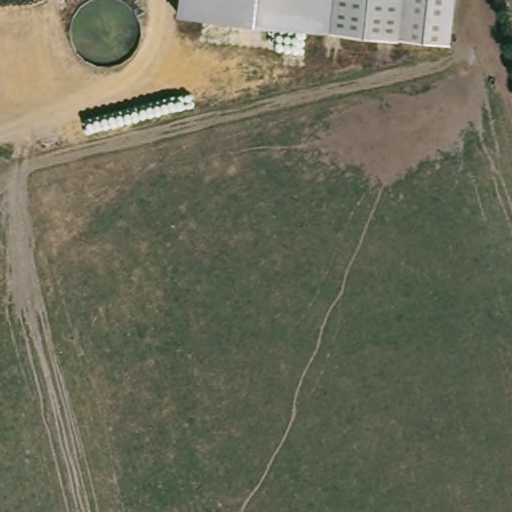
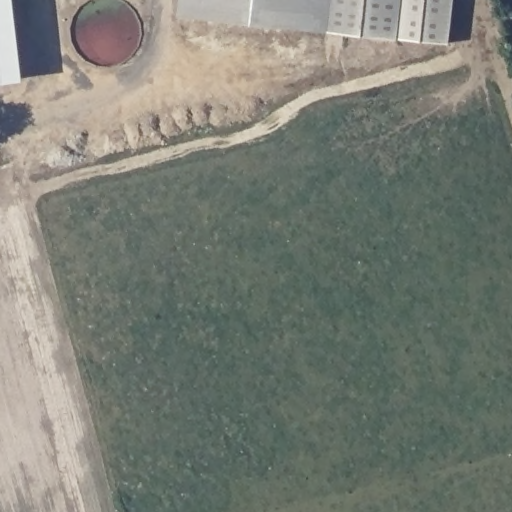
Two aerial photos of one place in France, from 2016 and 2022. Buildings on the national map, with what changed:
new [(0,83),(0,0),(16,0),(25,80),(0,83)]
unchanged [(182,0),(457,0),(452,43),(181,17),(182,0)]

